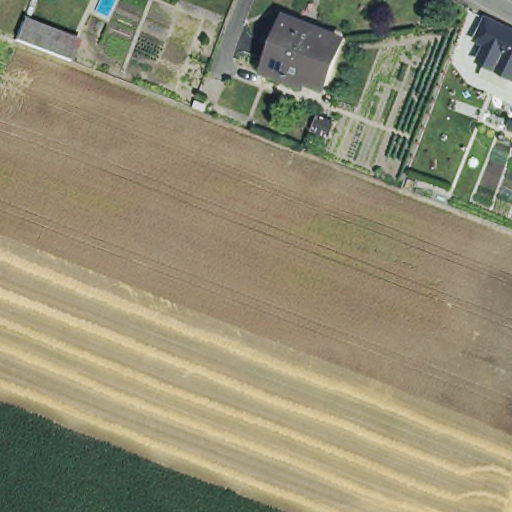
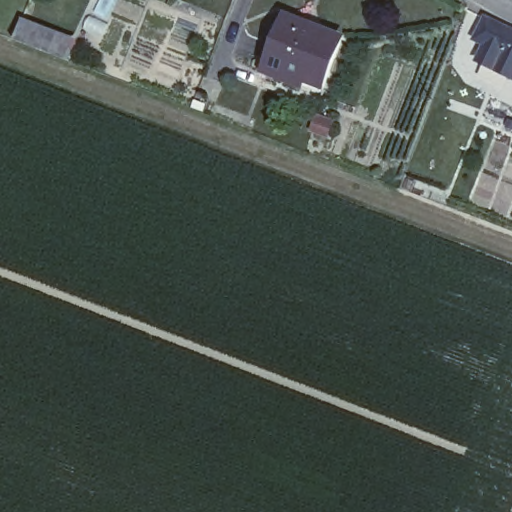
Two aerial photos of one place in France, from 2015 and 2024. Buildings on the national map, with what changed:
unchanged [(278,57),(297,11),(352,32),(333,78),(315,70),(312,79),(294,71),(275,65),(278,57)]
unchanged [(477,56),(478,52),(483,41),(472,36),(483,12),(512,28),(512,72),(511,72),(477,56)]
unchanged [(9,38),(15,19),(43,28),(45,29),(54,32),(47,53),(37,49),(9,38)]
unchanged [(503,124),(507,117),(512,119),(512,127),(510,126),(503,124)]

